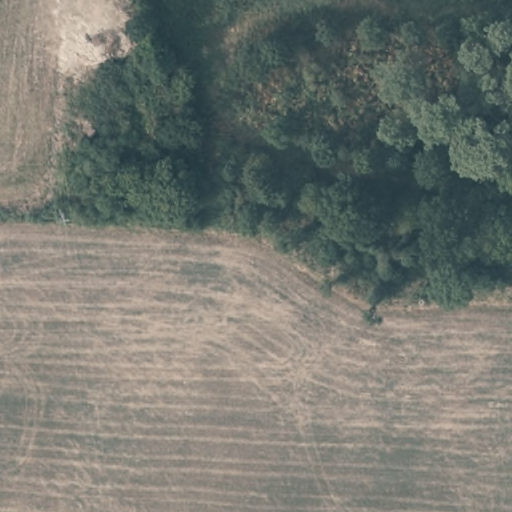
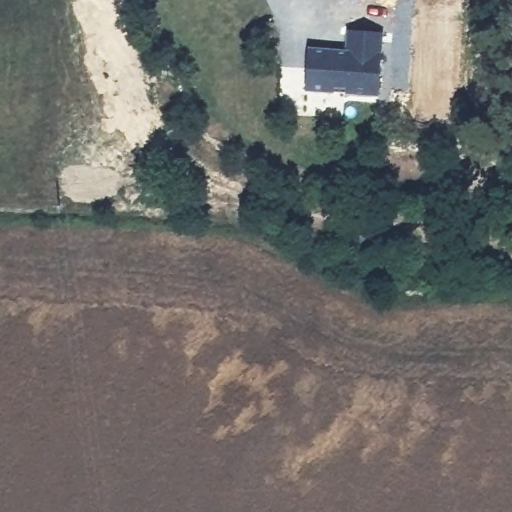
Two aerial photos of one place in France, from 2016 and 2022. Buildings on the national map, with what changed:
new [(308,45),(345,48),(346,28),(381,31),(376,96),(304,91),(308,45)]

